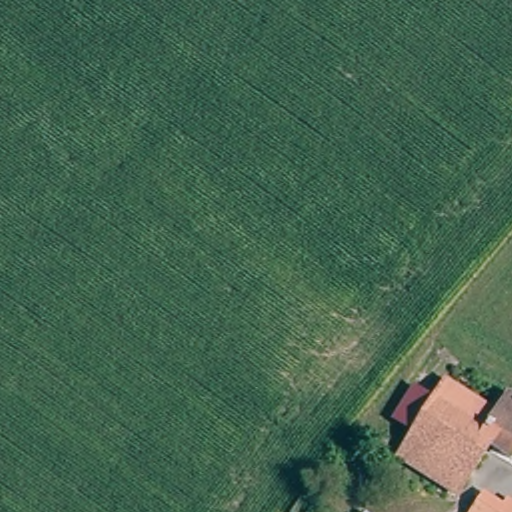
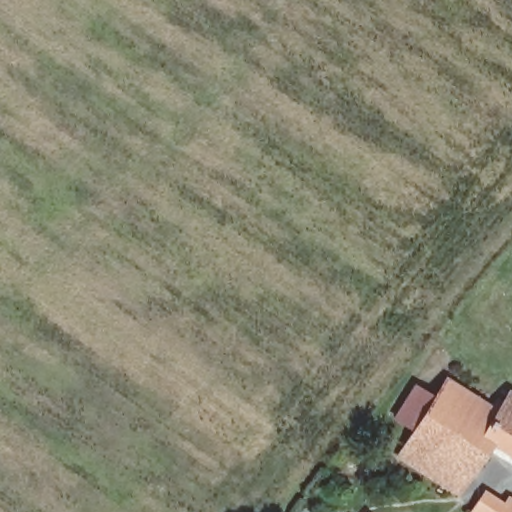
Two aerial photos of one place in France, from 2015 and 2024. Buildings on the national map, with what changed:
unchanged [(493,395),(504,403),(509,394),(512,396),(512,457),(492,446),(462,494),(402,459),(417,434),(396,421),(416,389),(437,401),(445,388),(484,408),(493,395)]
unchanged [(475,500),(482,492),(512,511),(512,512),(465,512),(475,500)]

